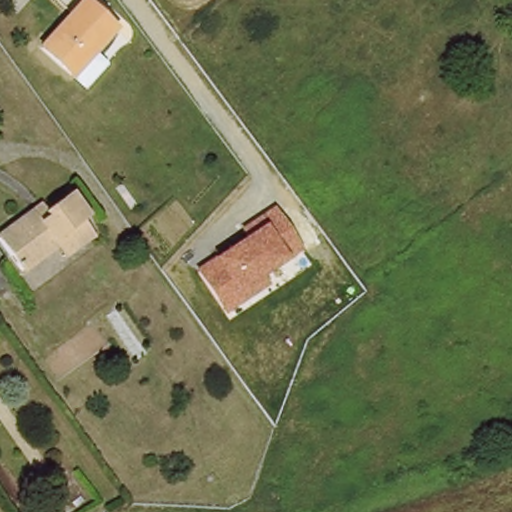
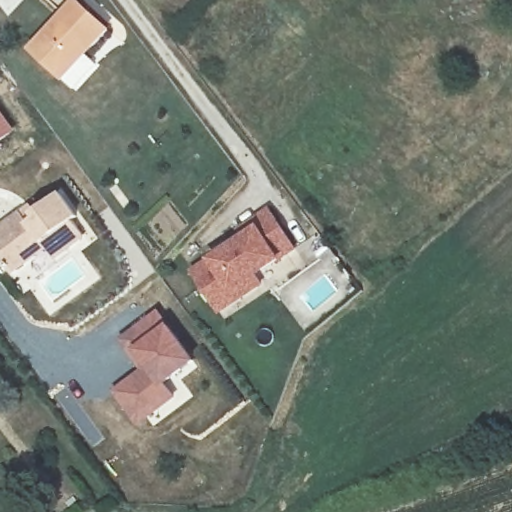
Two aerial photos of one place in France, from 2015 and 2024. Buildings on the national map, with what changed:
unchanged [(63,72),(30,42),(68,0),(80,0),(106,24),(86,46),(96,56),(73,82),(63,72)]
new [(15,130),(0,140),(0,108),(15,130)]
unchanged [(30,211),(34,216),(65,195),(81,216),(78,221),(90,235),(63,258),(51,245),(15,272),(0,253),(0,233),(30,211)]
unchanged [(241,237),(235,229),(269,206),(299,251),(262,276),(268,285),(220,315),(193,270),(241,237)]
new [(140,368),(118,341),(157,308),(196,360),(167,383),(176,396),(137,426),(111,391),(140,368)]

